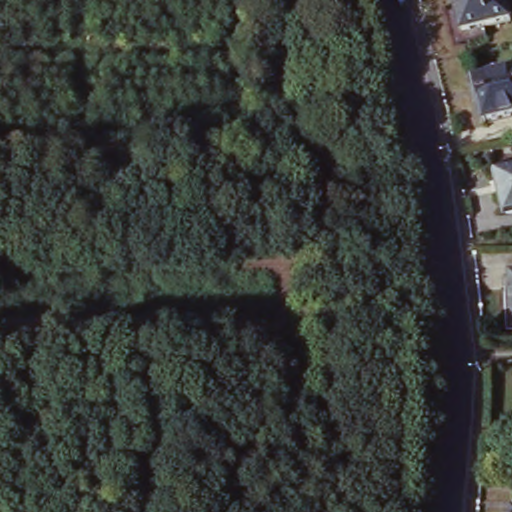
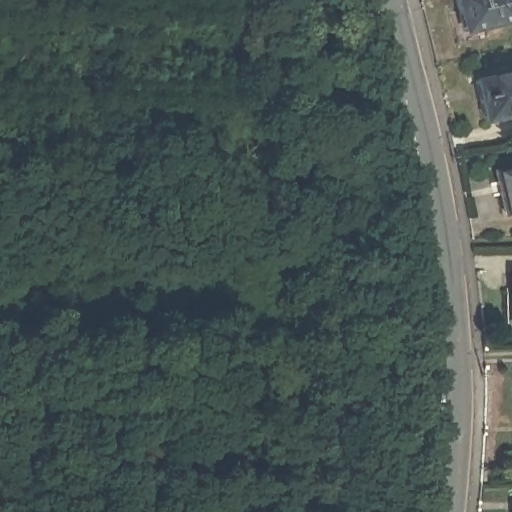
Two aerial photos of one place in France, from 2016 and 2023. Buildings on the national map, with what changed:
unchanged [(462,31),(454,0),(504,0),(508,19),(462,31)]
unchanged [(512,73),(512,112),(488,118),(480,81),(512,73)]
unchanged [(512,171),(512,215),(507,216),(496,175),(512,171)]
unchanged [(512,273),(512,306),(507,274),(512,273)]
unchanged [(512,508),(512,512),(509,512),(509,508),(512,508)]

